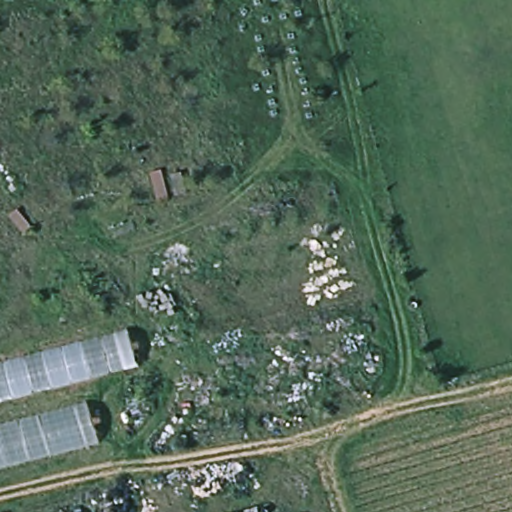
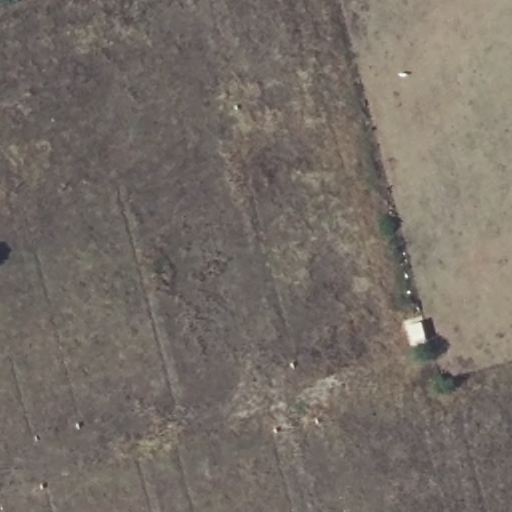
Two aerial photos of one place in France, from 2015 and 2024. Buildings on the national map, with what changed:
demolished [(134,363),(83,377),(100,446),(0,469),(0,367),(125,335),(134,363)]

